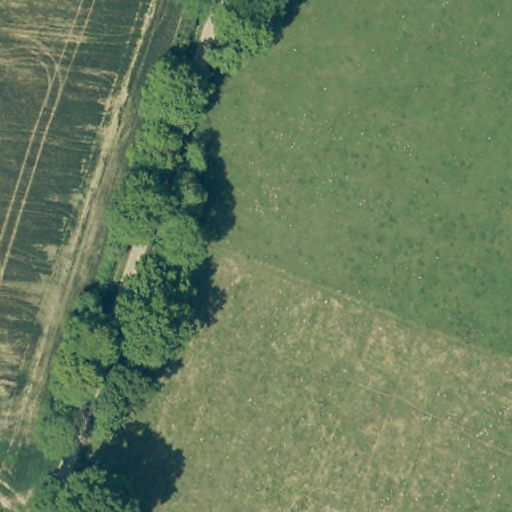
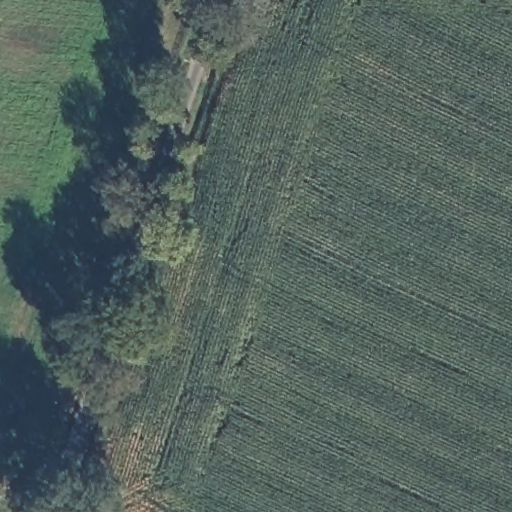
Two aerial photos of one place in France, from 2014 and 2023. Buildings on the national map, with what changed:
[]

